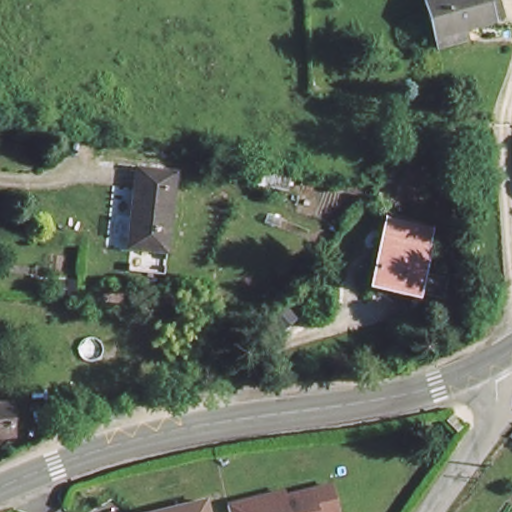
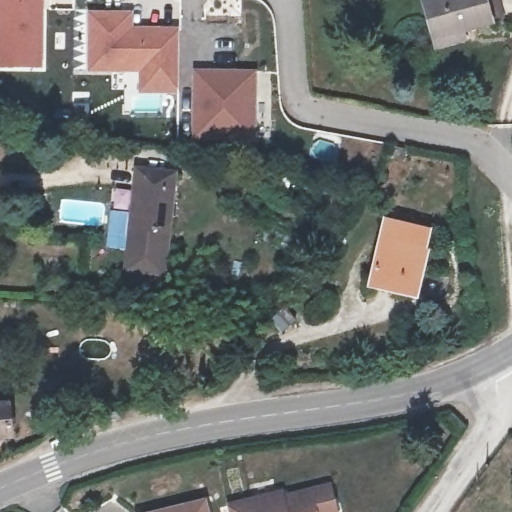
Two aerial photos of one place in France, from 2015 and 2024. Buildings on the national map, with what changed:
new [(0,67),(0,0),(42,0),(42,67),(0,67)]
unchanged [(499,16),(487,19),(490,27),(433,40),(424,0),(493,0),(499,16)]
new [(89,71),(87,11),(132,12),(132,27),(163,28),(163,72),(89,71)]
new [(191,140),(193,70),(255,71),(255,141),(191,140)]
unchanged [(137,205),(142,165),(176,171),(170,250),(142,246),(131,244),(137,205)]
unchanged [(413,294),(392,289),(395,282),(371,276),(392,218),(435,230),(413,294)]
unchanged [(0,405),(10,405),(12,436),(0,438),(0,405)]
unchanged [(230,512),(228,499),(333,480),(339,512),(230,512)]
unchanged [(207,493),(213,512),(137,512),(137,511),(207,493)]

